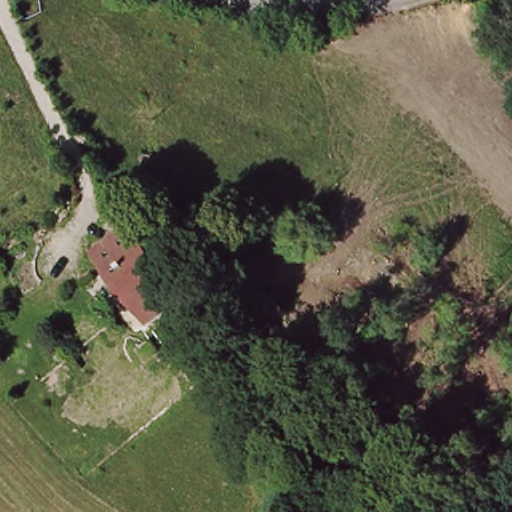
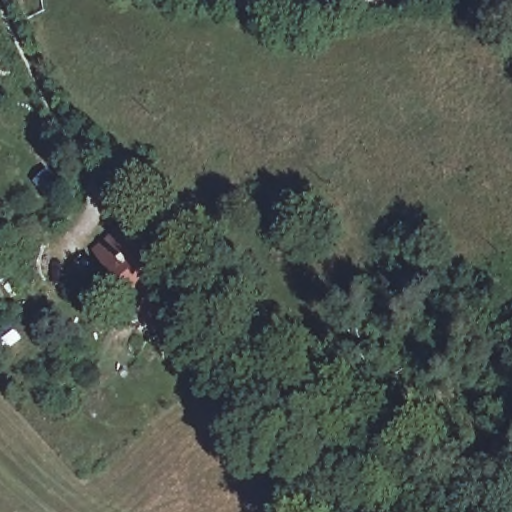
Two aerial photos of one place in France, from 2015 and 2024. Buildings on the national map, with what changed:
unchanged [(133,227),(189,297),(190,300),(155,329),(95,253),(133,227)]

